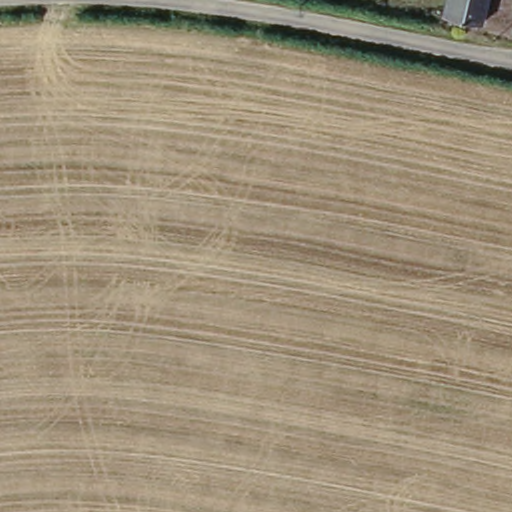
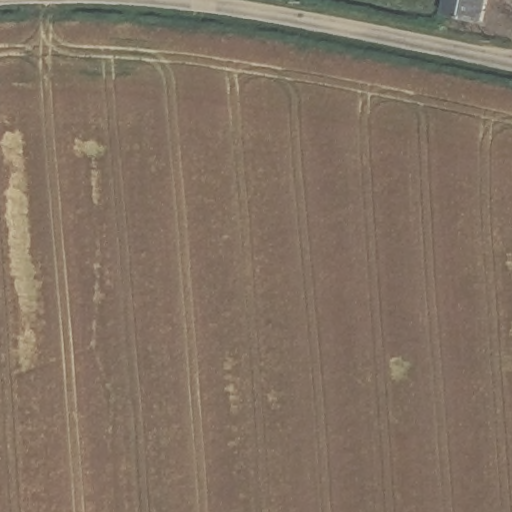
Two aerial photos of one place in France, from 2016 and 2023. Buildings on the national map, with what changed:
unchanged [(486,0),(480,25),(441,17),(445,0),(486,0)]

